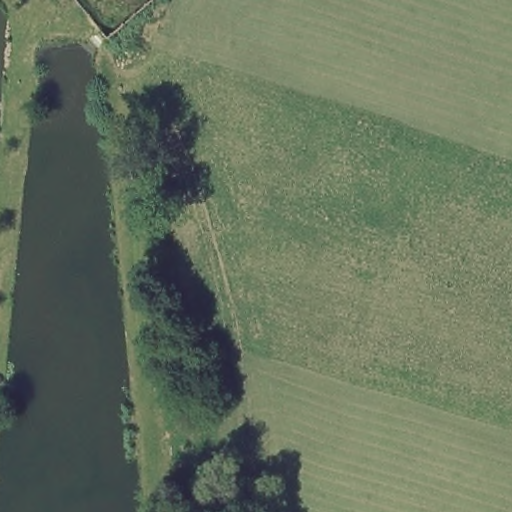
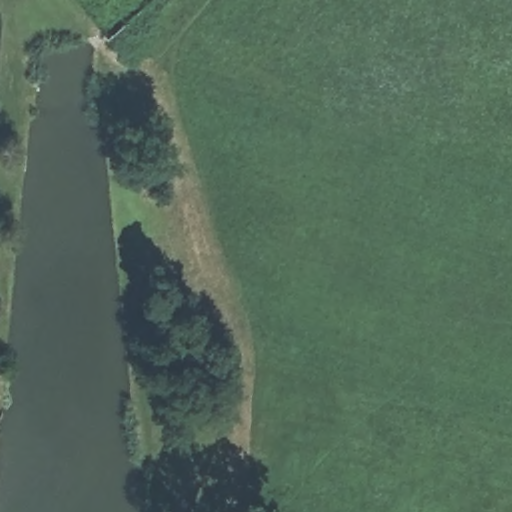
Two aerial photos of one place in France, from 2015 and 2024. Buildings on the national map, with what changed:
[]

